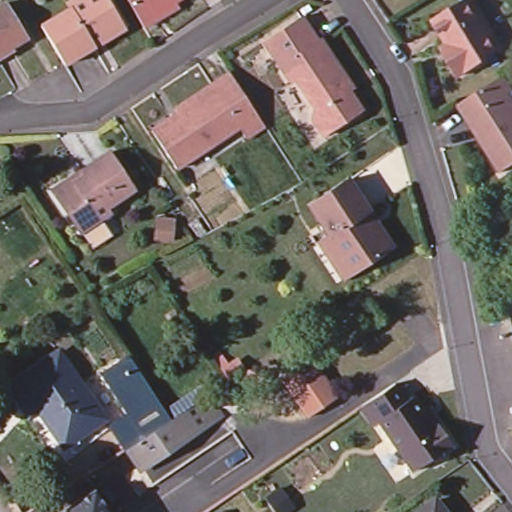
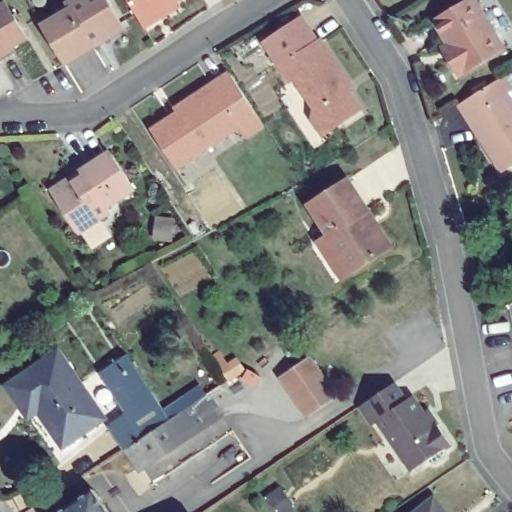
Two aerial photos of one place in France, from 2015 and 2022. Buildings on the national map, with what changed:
unchanged [(72,13),(69,8),(83,0),(105,0),(126,35),(95,54),(99,60),(68,77),(42,31),(72,13)]
unchanged [(153,35),(140,43),(113,0),(194,0),(195,0),(170,15),(175,22),(153,35)]
unchanged [(507,55),(464,83),(451,63),(457,60),(437,28),(475,4),(507,55)]
unchanged [(0,64),(0,5),(21,39),(10,46),(15,54),(0,64)]
unchanged [(323,51),(327,49),(353,93),(350,95),(365,119),(324,143),(314,125),(317,116),(300,85),(295,88),(272,48),(310,26),(323,51)]
unchanged [(268,136),(249,147),(242,137),(178,177),(154,138),(181,121),(178,117),(235,82),(268,136)]
unchanged [(512,107),(509,109),(512,114),(512,182),(507,185),(486,152),(490,149),(476,128),(472,131),(463,117),(505,91),(512,104),(512,107)]
unchanged [(110,221),(113,225),(83,246),(55,204),(75,191),(85,184),(113,166),(138,202),(110,221)]
unchanged [(381,237),(395,258),(355,284),(343,266),(337,269),(325,250),(329,247),(310,218),(350,191),(371,222),(381,237)]
unchanged [(53,444),(22,398),(13,403),(0,384),(49,350),(94,417),(53,444)]
unchanged [(280,378),(309,358),(336,398),(307,418),(280,378)]
unchanged [(117,439),(136,426),(108,384),(133,369),(175,433),(192,421),(215,406),(224,420),(201,435),(141,475),(132,461),(117,439)]
unchanged [(445,451),(443,458),(435,463),(428,462),(412,472),(378,422),(372,426),(360,408),(395,384),(406,402),(412,398),(424,414),(428,411),(438,426),(451,446),(445,451)]
unchanged [(52,512),(90,487),(107,512),(52,512)]
unchanged [(412,512),(435,495),(448,512),(412,512)]

